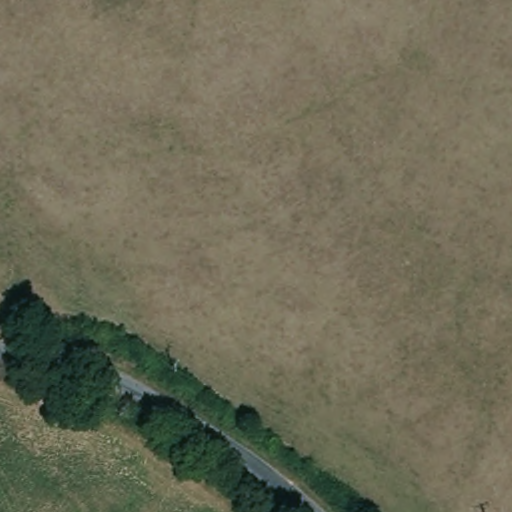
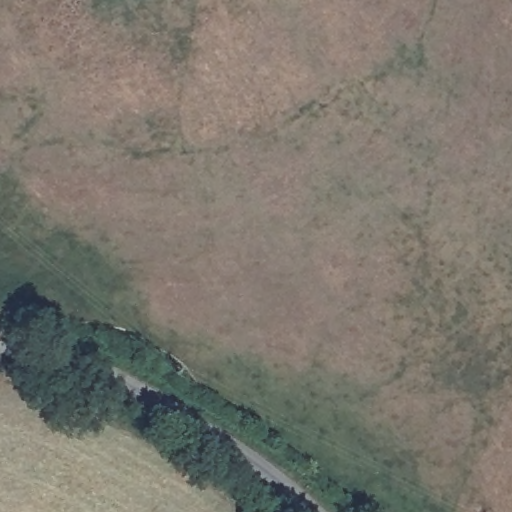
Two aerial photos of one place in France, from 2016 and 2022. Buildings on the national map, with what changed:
[]

